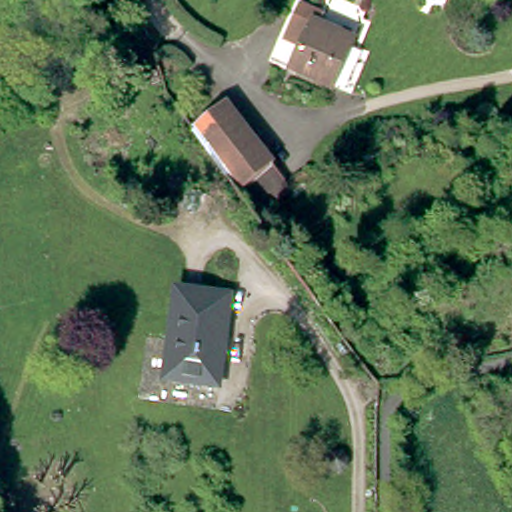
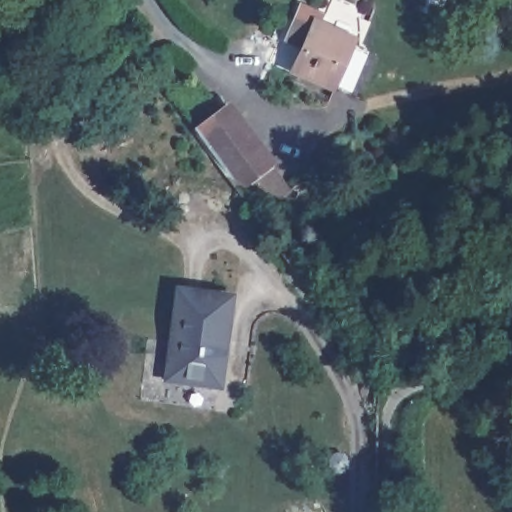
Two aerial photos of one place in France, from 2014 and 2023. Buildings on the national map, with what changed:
unchanged [(300,47),(286,40),(303,1),(325,10),(320,20),(361,36),(357,48),(350,44),(310,26),(300,47)]
unchanged [(300,47),(310,26),(350,44),(331,87),(290,70),(300,47)]
unchanged [(190,122),(223,96),(285,183),(251,207),(190,122)]
unchanged [(173,293),(225,292),(225,382),(173,382),(173,293)]

